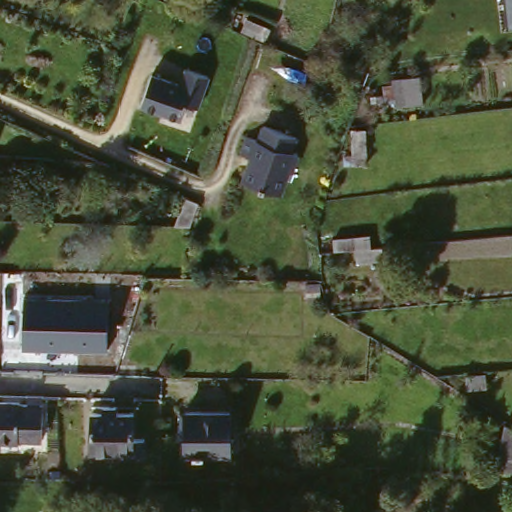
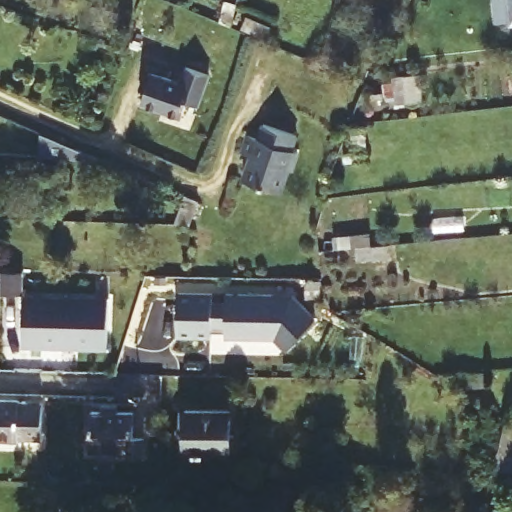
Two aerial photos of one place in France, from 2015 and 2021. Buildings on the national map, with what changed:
unchanged [(283,36),(278,48),(252,35),(257,24),(283,36)]
unchanged [(185,120),(145,104),(147,98),(157,73),(185,85),(190,69),(214,79),(202,109),(191,104),(187,114),(185,120)]
unchanged [(392,71),(420,69),(423,96),(395,98),(392,71)]
unchanged [(300,132),(294,147),(300,149),(299,154),(294,167),(290,166),(280,189),(246,176),(255,153),(244,149),(249,134),(250,131),(262,135),(267,120),(300,132)]
unchanged [(206,206),(192,233),(178,232),(194,202),(206,206)]
unchanged [(324,286),(323,303),(311,303),(312,286),(324,286)]
new [(212,292),(212,302),(225,303),(226,293),(294,294),(317,320),(283,351),(273,340),(224,338),(224,331),(212,331),(211,339),(176,337),(179,291),(212,292)]
unchanged [(26,346),(27,296),(110,297),(109,346),(26,346)]
unchanged [(20,405),(42,405),(41,436),(19,436),(19,442),(0,441),(0,401),(20,401),(20,405)]
unchanged [(134,414),(132,452),(90,451),(91,413),(134,414)]
unchanged [(229,458),(184,457),(185,415),(230,415),(229,458)]
unchanged [(505,426),(509,427),(512,427),(512,475),(496,471),(505,426)]

